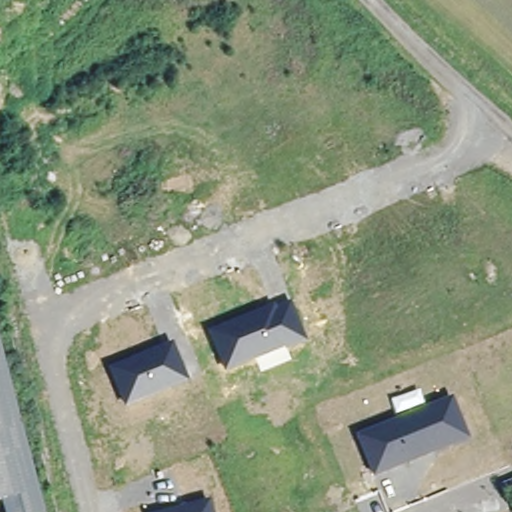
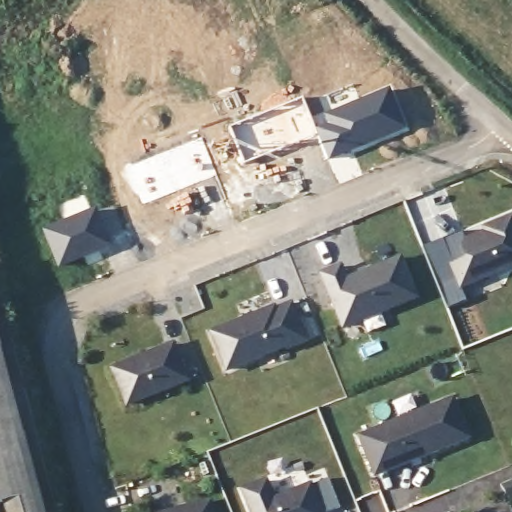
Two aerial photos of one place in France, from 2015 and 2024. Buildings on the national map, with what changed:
new [(389,89),(406,131),(327,163),(314,130),(327,125),(324,116),(389,89)]
new [(302,98),(304,102),(316,135),(242,165),(227,126),(302,98)]
new [(74,215),(104,208),(105,213),(103,214),(113,246),(109,248),(110,253),(86,264),(84,258),(57,269),(42,229),(74,215)]
new [(471,239),(492,230),(490,227),(512,218),(512,266),(466,284),(462,275),(443,283),(428,244),(448,237),(467,229),(471,239)]
new [(342,262),(348,275),(401,253),(418,298),(341,328),(317,272),(342,262)]
unchanged [(276,305),(278,310),(292,304),(306,342),(224,373),(208,330),(276,305)]
unchanged [(174,343),(189,382),(124,406),(110,368),(174,343)]
unchanged [(40,512),(23,512),(19,497),(3,501),(0,502),(0,358),(40,512)]
unchanged [(453,398),(470,440),(373,479),(356,436),(453,398)]
new [(268,479),(276,497),(313,482),(313,484),(331,477),(342,505),(324,512),(255,512),(245,488),(268,479)]
unchanged [(211,499),(215,512),(163,512),(211,499)]

